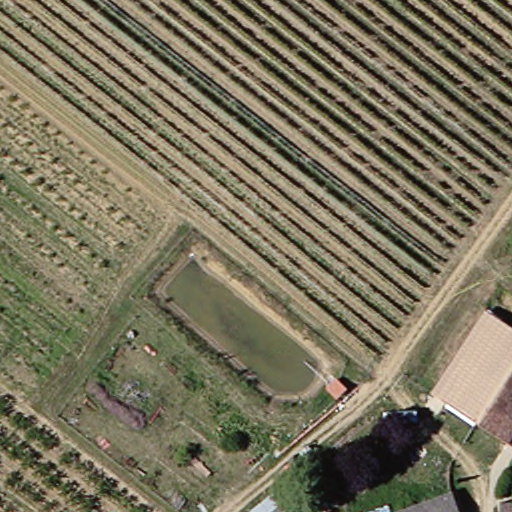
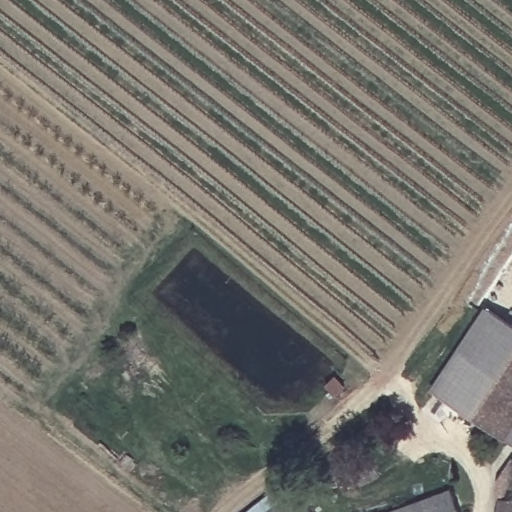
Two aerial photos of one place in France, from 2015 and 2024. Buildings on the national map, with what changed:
unchanged [(436,390),(490,306),(512,320),(512,437),(511,438),(436,390)]
unchanged [(339,393),(330,384),(339,375),(348,384),(339,393)]
unchanged [(512,437),(512,439),(511,438),(512,437)]
unchanged [(455,490),(463,512),(396,512),(455,490)]
unchanged [(293,503),(302,512),(282,512),(293,503)]
unchanged [(504,503),(512,504),(512,512),(504,512),(504,503)]

